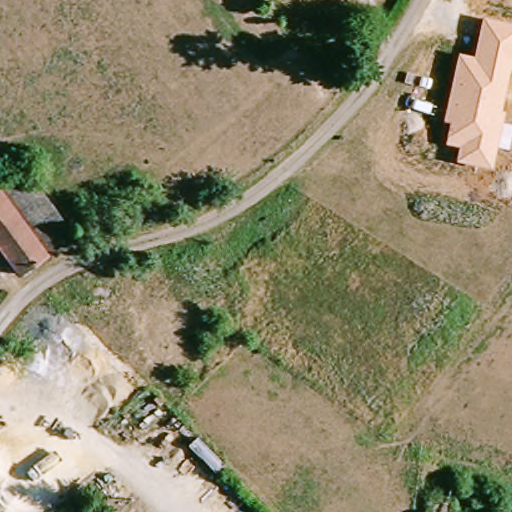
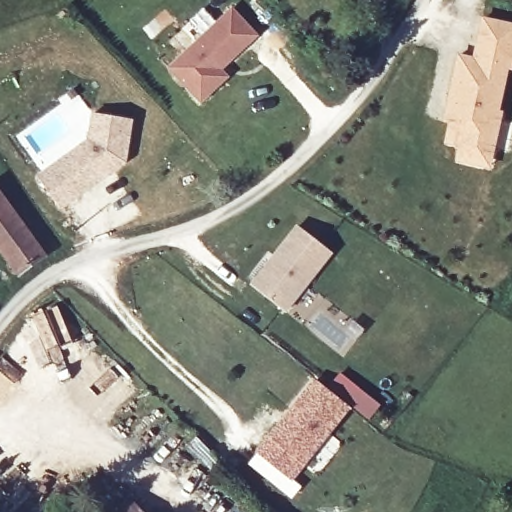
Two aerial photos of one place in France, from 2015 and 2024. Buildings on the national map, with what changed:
new [(260,34),(224,70),(230,76),(203,102),(169,66),(232,6),(260,34)]
unchanged [(508,70),(500,110),(504,112),(493,168),(455,160),(458,146),(445,143),(449,125),(442,123),(457,52),(475,56),(483,16),(512,23),(512,70),(508,70)]
new [(90,140),(94,115),(131,121),(125,163),(116,170),(114,167),(109,170),(109,174),(61,209),(38,177),(90,140)]
unchanged [(19,280),(0,256),(0,197),(46,260),(19,280)]
new [(333,252),(288,313),(252,285),(298,225),(333,252)]
new [(315,380),(327,390),(340,373),(359,388),(347,405),(349,406),(303,465),(292,479),(258,453),(269,439),(315,380)]
new [(140,512),(115,512),(129,499),(140,512)]

